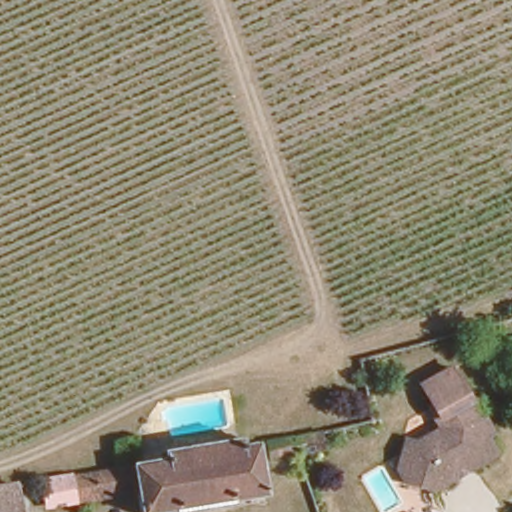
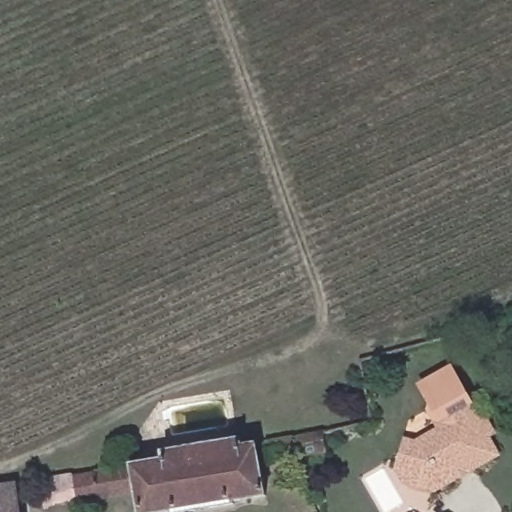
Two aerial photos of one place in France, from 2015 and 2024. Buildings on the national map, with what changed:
unchanged [(433,418),(412,381),(453,361),(471,399),(433,418)]
unchanged [(439,484),(429,489),(403,481),(395,465),(404,434),(418,439),(440,427),(438,421),(470,405),(479,421),(486,418),(494,434),(488,437),(497,454),(479,463),(457,475),(439,484)]
unchanged [(270,435),(295,430),(323,425),(328,446),(302,451),(301,449),(274,453),(270,435)]
unchanged [(241,440),(257,437),(264,489),(233,495),(234,499),(168,510),(167,506),(142,511),(137,485),(47,501),(43,475),(163,453),(163,449),(239,436),(241,440)]
unchanged [(16,484),(20,512),(0,512),(0,487),(16,484)]

